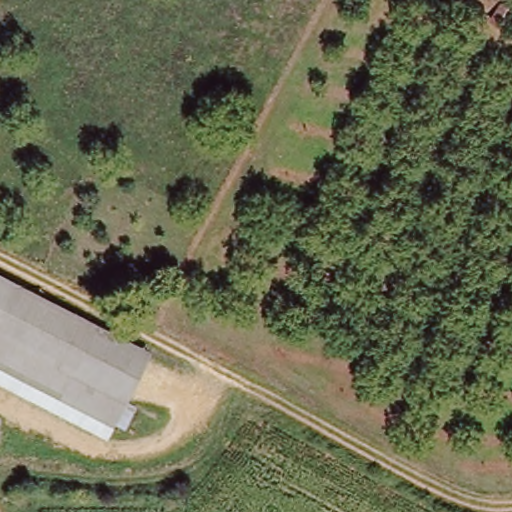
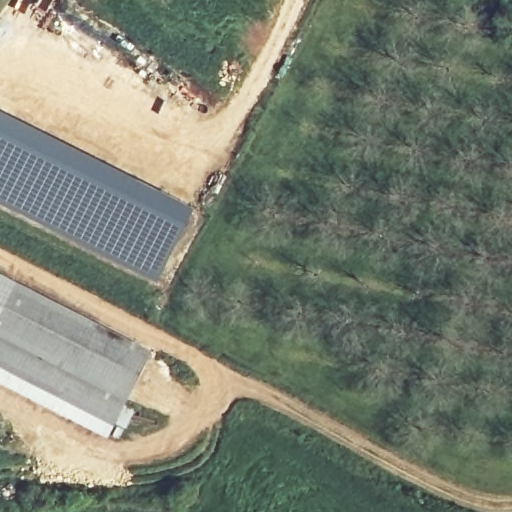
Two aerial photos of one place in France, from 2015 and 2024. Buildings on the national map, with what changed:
new [(192,210),(155,283),(0,205),(0,114),(192,210)]
unchanged [(106,439),(0,385),(0,275),(150,352),(125,402),(106,439)]

